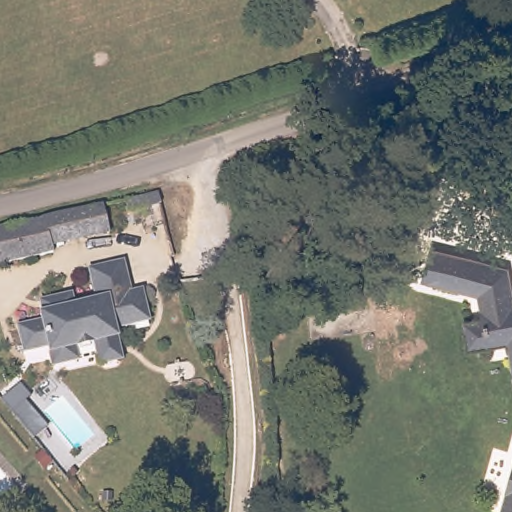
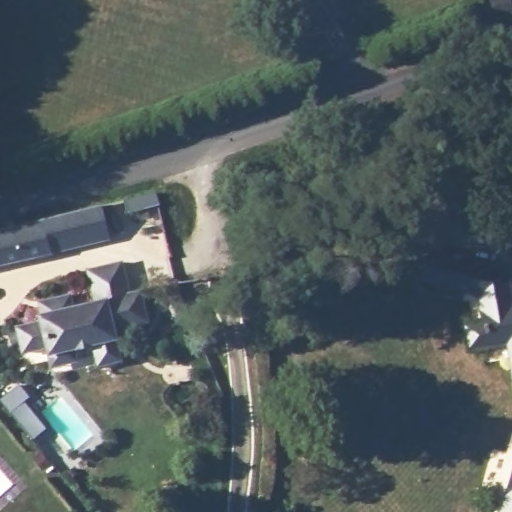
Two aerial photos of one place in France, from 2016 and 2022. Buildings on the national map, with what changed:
unchanged [(124,199),(155,192),(158,204),(156,205),(126,212),(124,199)]
unchanged [(48,222),(106,209),(113,237),(55,250),(48,222)]
unchanged [(55,250),(56,257),(0,270),(0,234),(48,222),(55,250)]
unchanged [(509,343),(488,348),(469,352),(464,327),(483,323),(477,297),(421,281),(430,250),(505,271),(512,304),(512,361),(509,343)]
unchanged [(99,365),(95,345),(94,342),(75,347),(75,348),(71,355),(56,358),(50,354),(48,345),(24,351),(19,325),(42,320),(40,313),(38,301),(71,293),(74,306),(98,301),(90,270),(124,262),(131,293),(142,291),(149,322),(115,329),(118,340),(122,360),(99,365)]
unchanged [(34,438),(0,398),(19,383),(30,396),(24,401),(45,428),(34,438)]
unchanged [(512,495),(512,512),(508,512),(512,495)]

